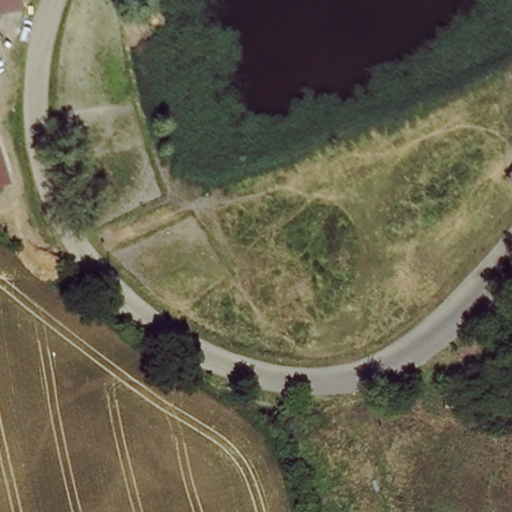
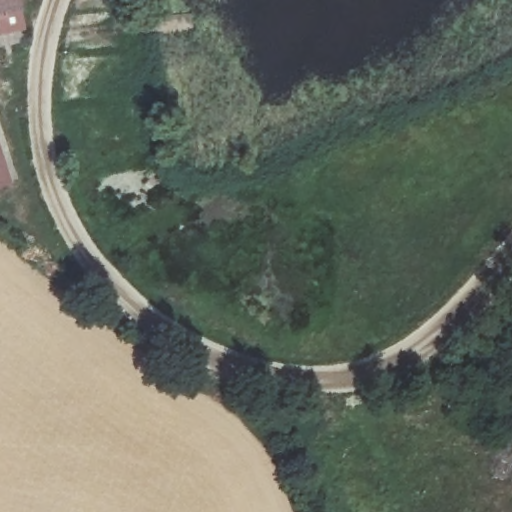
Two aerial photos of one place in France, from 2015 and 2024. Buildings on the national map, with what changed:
unchanged [(0,13),(0,0),(13,0),(15,8),(0,13)]
unchanged [(0,189),(0,149),(12,186),(0,189)]
unchanged [(507,176),(512,169),(512,180),(507,176)]

